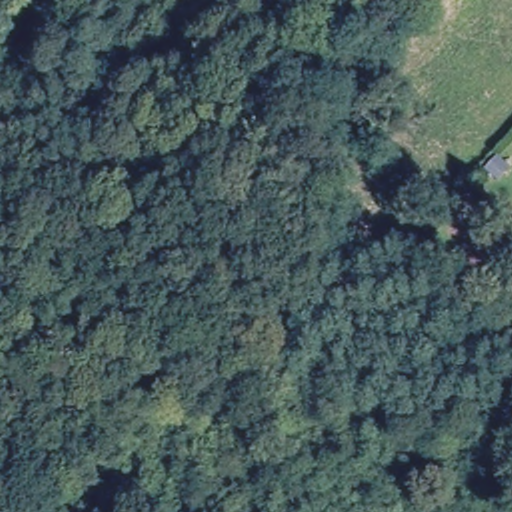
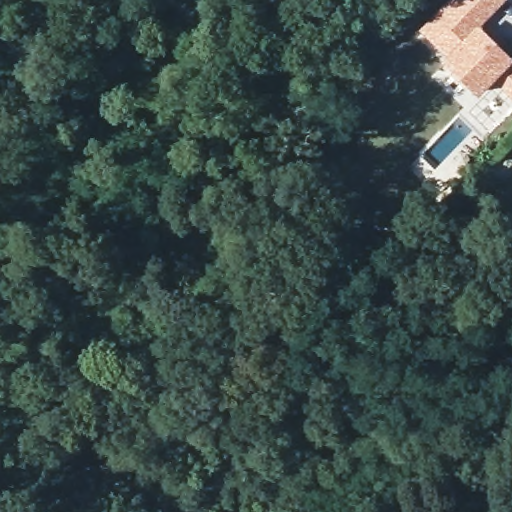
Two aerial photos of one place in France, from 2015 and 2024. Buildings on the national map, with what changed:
new [(512,59),(512,90),(509,94),(492,81),(479,97),(441,63),(447,56),(418,32),(449,0),(503,0),(477,26),(512,59)]
unchanged [(509,169),(497,183),(487,174),(499,160),(509,169)]

